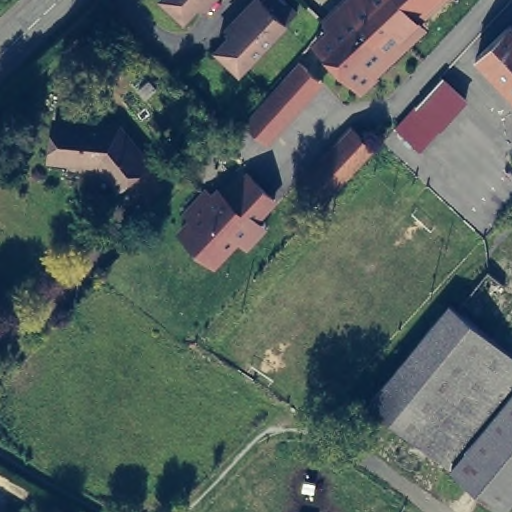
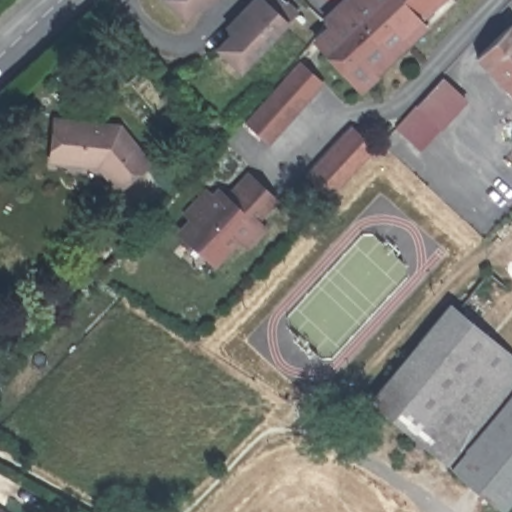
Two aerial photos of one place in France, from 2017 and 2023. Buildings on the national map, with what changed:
unchanged [(185,18),(165,0),(202,0),(185,18)]
unchanged [(245,70),(220,48),(255,12),(250,7),(257,0),(284,0),(300,14),(245,70)]
unchanged [(370,0),(444,0),(397,44),(404,51),(407,54),(373,86),(329,40),(370,0)]
unchanged [(478,58),(510,27),(512,29),(512,93),(478,58)]
unchanged [(300,63),(324,85),(271,144),(247,123),(300,63)]
unchanged [(445,77),(467,102),(442,129),(423,150),(398,129),(420,105),(445,77)]
unchanged [(148,162),(117,186),(97,161),(57,156),(58,155),(51,155),(57,117),(62,118),(121,126),(148,162)]
unchanged [(375,149),(331,196),(307,174),(351,127),(375,149)]
unchanged [(277,200),(260,222),(267,229),(247,251),(238,244),(214,270),(175,232),(187,219),(181,213),(203,187),(211,195),(216,189),(223,195),(246,170),(277,200)]
unchanged [(512,346),(512,408),(465,468),(385,403),(466,309),(512,346)]
unchanged [(512,408),(512,507),(465,468),(512,408)]
unchanged [(0,512),(0,511),(2,512),(0,512)]

